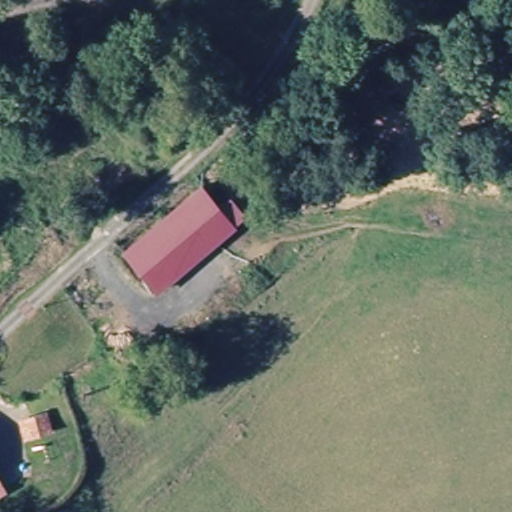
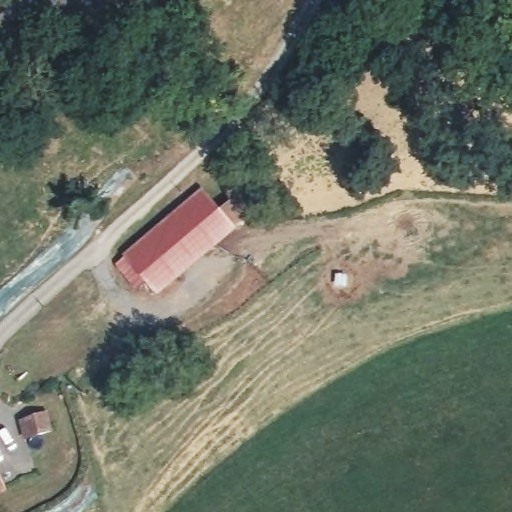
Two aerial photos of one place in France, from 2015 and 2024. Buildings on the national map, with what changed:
unchanged [(201,194),(218,214),(230,205),(245,222),(157,296),(124,259),(201,194)]
unchanged [(20,424),(46,415),(55,438),(28,448),(20,424)]
unchanged [(0,487),(0,480),(3,485),(0,487)]

